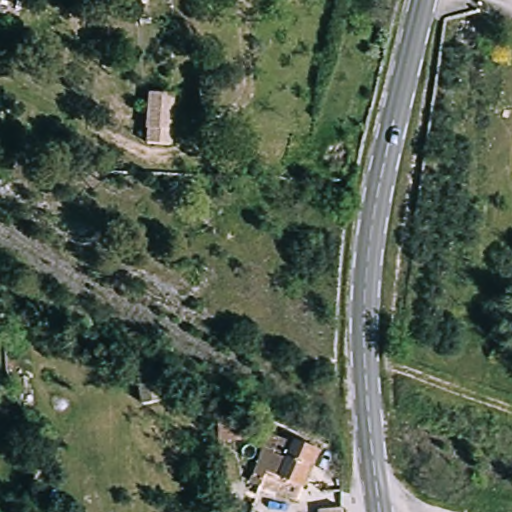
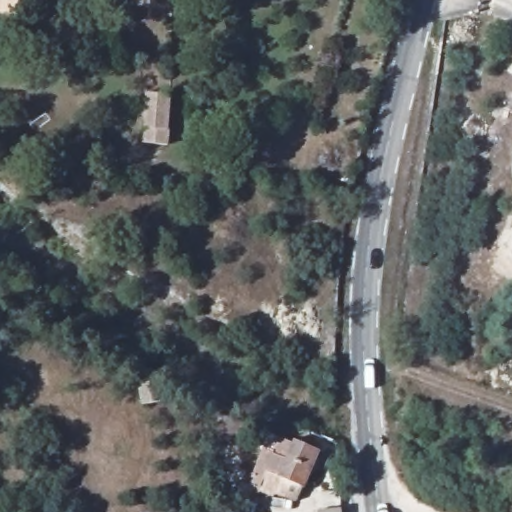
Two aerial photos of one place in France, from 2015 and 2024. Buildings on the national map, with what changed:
unchanged [(169,145),(142,143),(145,91),(171,92),(169,145)]
unchanged [(138,404),(130,361),(156,374),(160,401),(138,404)]
unchanged [(306,488),(299,500),(249,481),(270,430),(295,440),(321,452),(306,488)]

